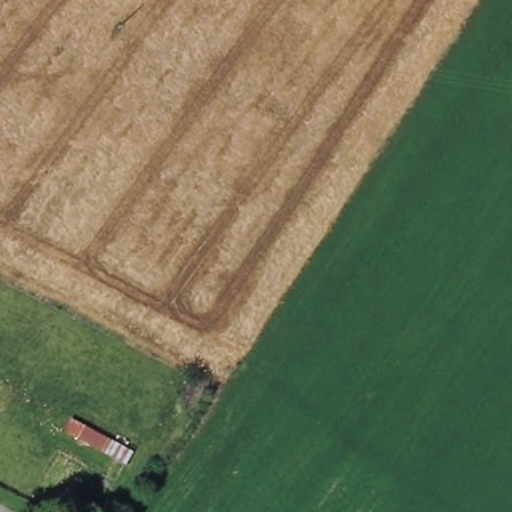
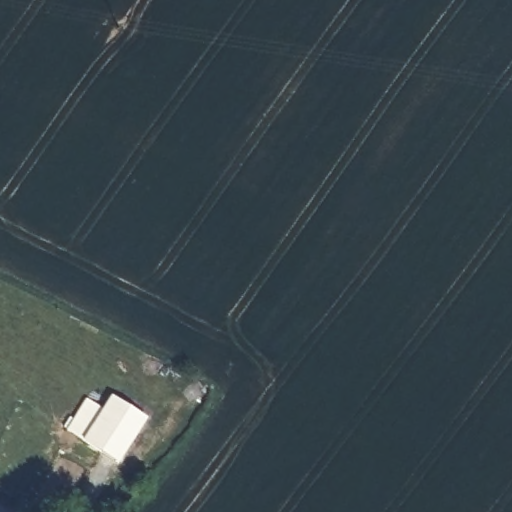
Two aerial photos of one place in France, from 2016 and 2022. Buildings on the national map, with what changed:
new [(86,397),(102,407),(110,396),(145,416),(120,463),(66,430),(86,397)]

